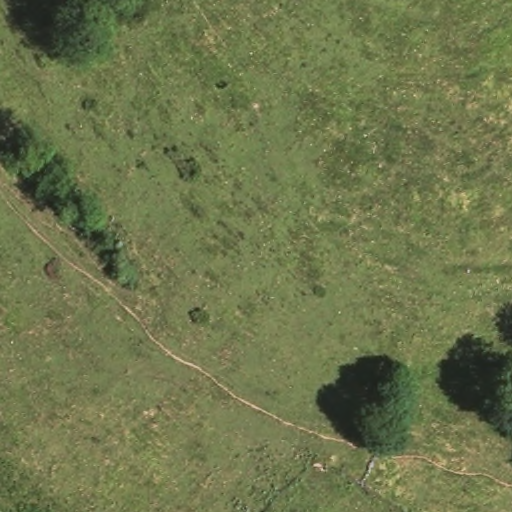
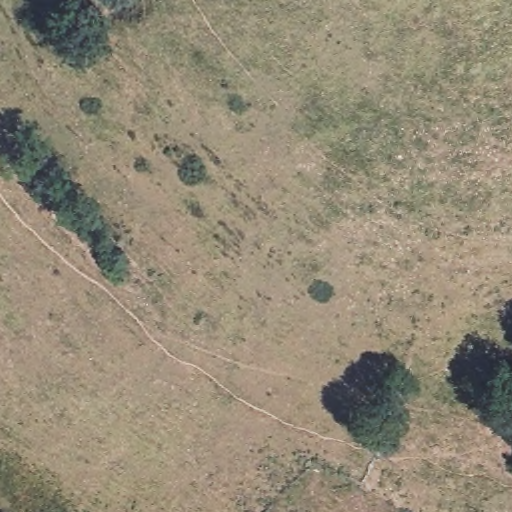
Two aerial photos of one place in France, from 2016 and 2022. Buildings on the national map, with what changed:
[]

